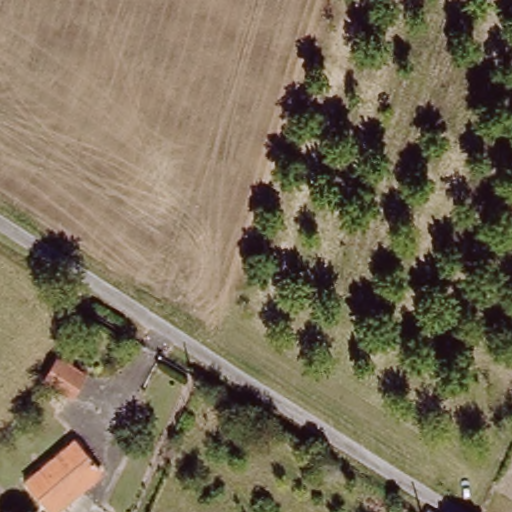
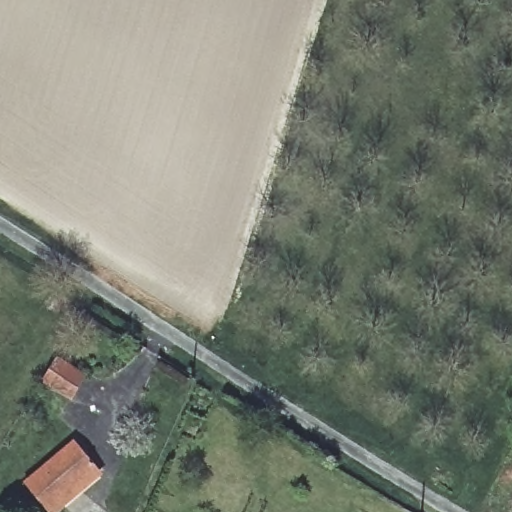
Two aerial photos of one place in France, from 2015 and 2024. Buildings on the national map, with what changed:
unchanged [(87,377),(74,398),(46,382),(60,360),(87,377)]
unchanged [(48,512),(24,483),(75,442),(99,472),(49,512),(48,512)]

